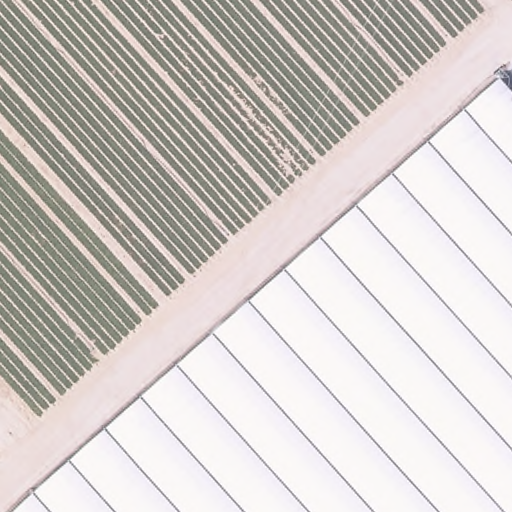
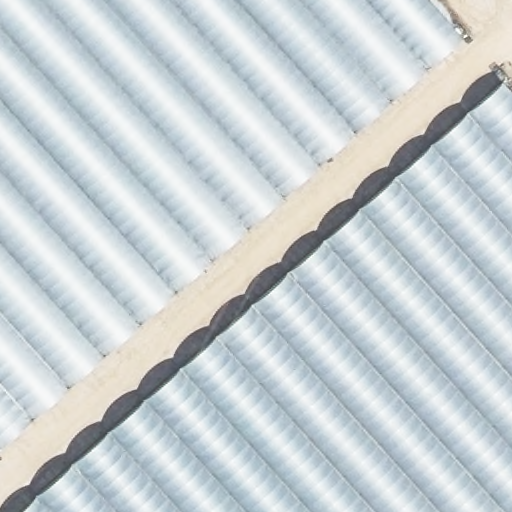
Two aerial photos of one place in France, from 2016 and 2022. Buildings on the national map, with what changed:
new [(66,386),(0,312),(0,0),(430,0),(462,35),(66,386)]
unchanged [(35,493),(250,303),(501,79),(512,92),(512,512),(16,512),(35,493)]
unchanged [(66,386),(0,444),(0,312),(66,386)]

